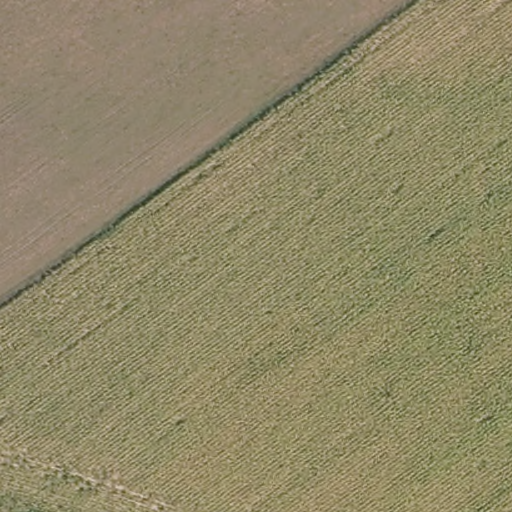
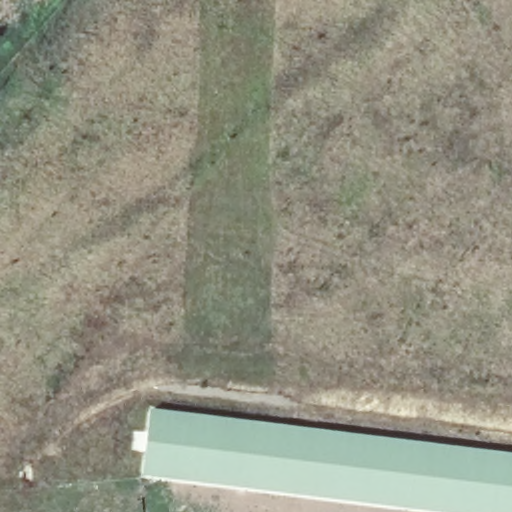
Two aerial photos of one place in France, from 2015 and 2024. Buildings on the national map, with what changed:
new [(428,512),(141,477),(149,409),(512,453),(512,512),(428,512)]

